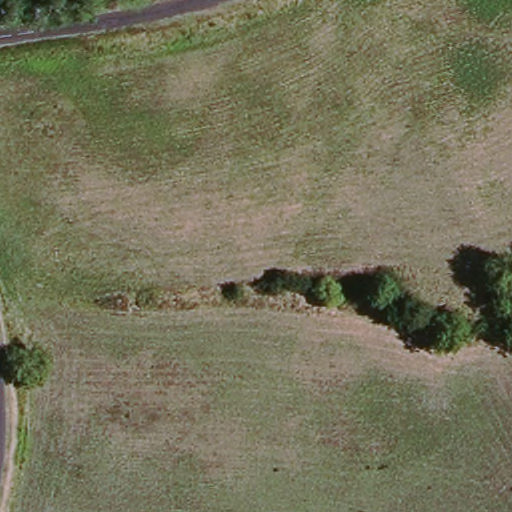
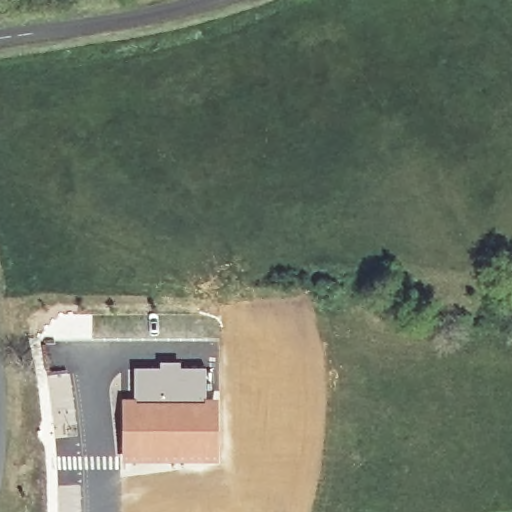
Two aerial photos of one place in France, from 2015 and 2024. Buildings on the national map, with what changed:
new [(158,367),(158,362),(180,362),(181,368),(206,367),(207,399),(185,402),(136,401),(135,399),(133,399),(131,368),(158,367)]
new [(133,399),(135,399),(136,401),(185,402),(207,399),(218,399),(219,463),(123,464),(121,399),(133,399)]

